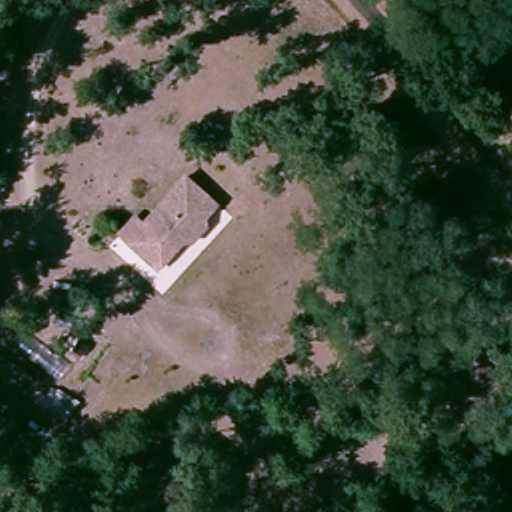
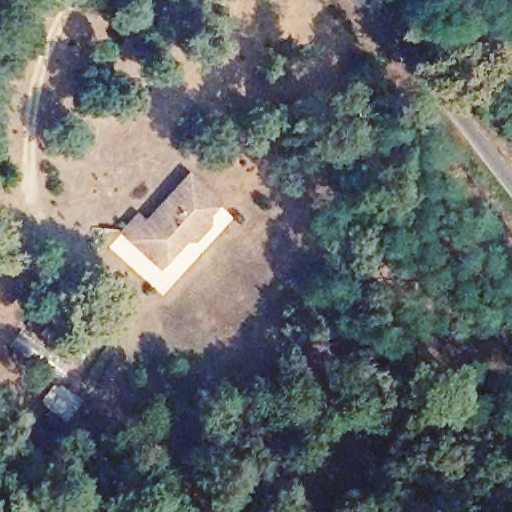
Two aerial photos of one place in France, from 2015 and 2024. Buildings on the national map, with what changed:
unchanged [(139,215),(145,222),(192,179),(219,207),(207,219),(207,229),(193,242),(183,242),(156,267),(122,231),(139,215)]

